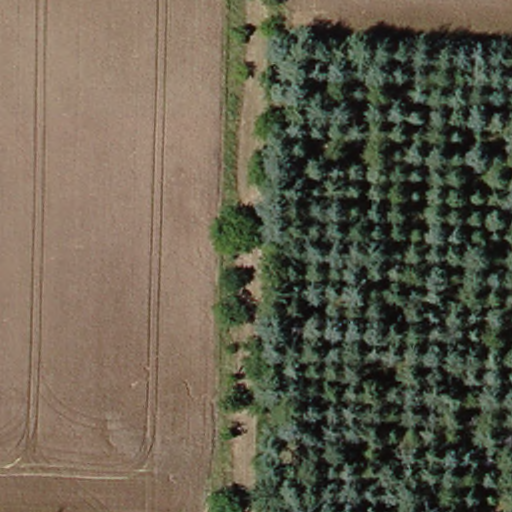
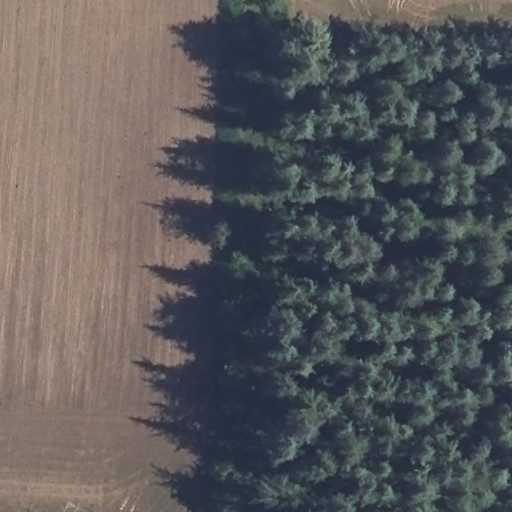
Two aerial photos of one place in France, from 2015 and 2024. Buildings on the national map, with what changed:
[]

